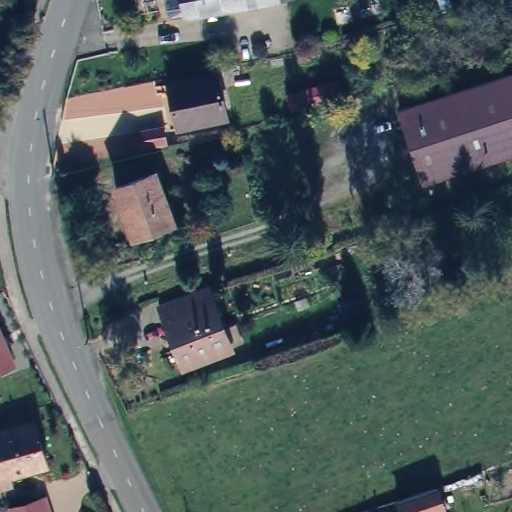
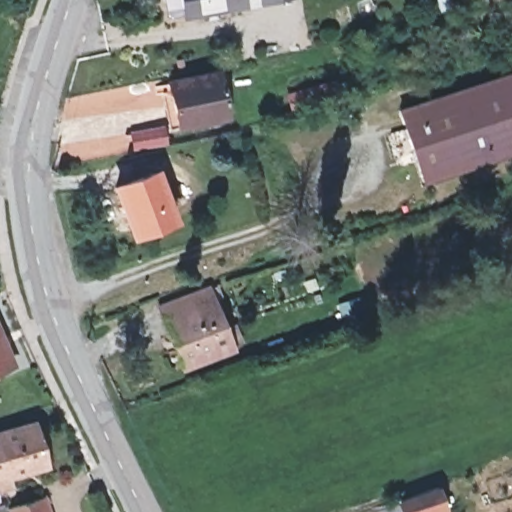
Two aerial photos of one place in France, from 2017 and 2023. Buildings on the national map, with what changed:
unchanged [(186,0),(252,0),(189,14),(186,0)]
unchanged [(176,120),(163,75),(214,61),(228,105),(176,120)]
unchanged [(424,178),(398,106),(512,67),(512,149),(424,178)]
unchanged [(129,232),(115,185),(158,172),(171,219),(129,232)]
unchanged [(184,365),(163,305),(214,288),(235,347),(184,365)]
unchanged [(0,362),(0,325),(13,356),(0,362)]
unchanged [(53,460),(0,475),(0,429),(41,417),(53,460)]
unchanged [(398,503),(444,486),(451,512),(400,512),(398,503)]
unchanged [(47,512),(11,512),(9,508),(43,497),(47,512)]

